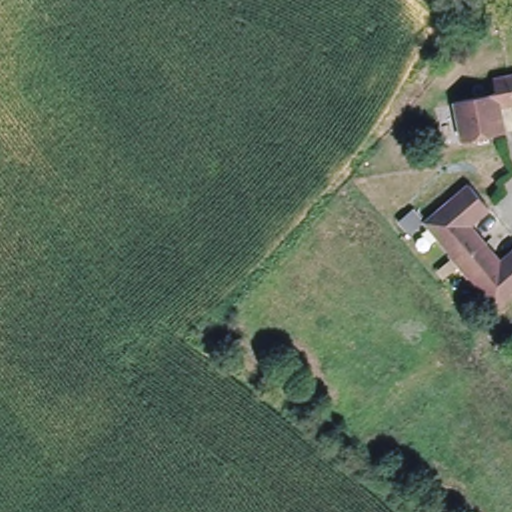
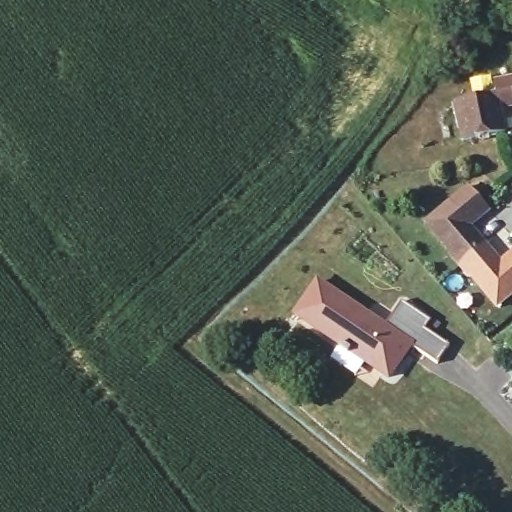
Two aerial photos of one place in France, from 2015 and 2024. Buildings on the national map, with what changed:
unchanged [(502,130),(461,140),(452,101),(492,92),(488,76),(512,71),(512,104),(497,107),(502,130)]
unchanged [(474,285),(471,290),(438,249),(442,246),(420,221),(464,184),(485,209),(468,228),(497,263),(512,250),(512,295),(494,311),(474,285)]
new [(388,381),(291,316),(316,278),(387,327),(403,303),(429,321),(424,330),(448,346),(438,363),(411,348),(388,381)]

